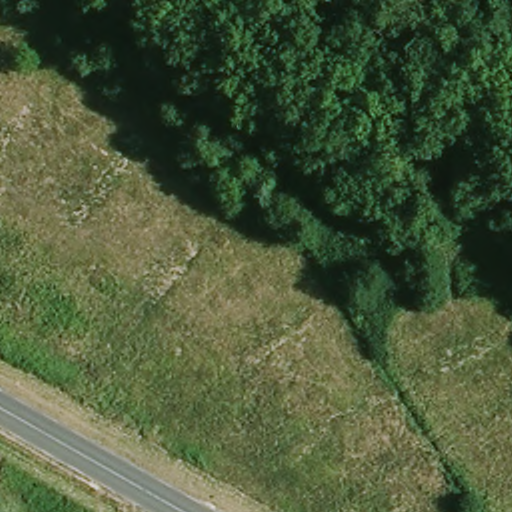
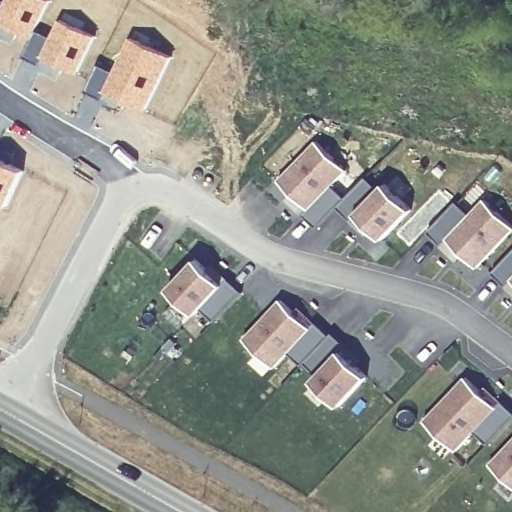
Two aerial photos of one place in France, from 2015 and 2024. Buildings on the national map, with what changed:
new [(0,10),(0,0),(5,0),(0,10)]
new [(5,0),(50,0),(37,28),(31,40),(0,26),(0,10),(5,0)]
new [(31,40),(37,28),(50,34),(58,17),(95,34),(76,74),(27,49),(31,40)]
new [(97,64),(112,70),(129,35),(171,55),(143,111),(87,88),(97,64)]
new [(315,141),(346,170),(331,185),(345,197),(365,177),(378,189),(384,184),(411,210),(383,240),(356,214),(350,220),(336,207),(316,228),(302,214),(308,209),(278,180),(315,141)]
new [(25,169),(6,208),(0,205),(0,157),(25,169)]
new [(469,214),(483,199),(512,227),(512,230),(476,267),(446,239),(441,245),(427,231),(455,202),(469,214)]
new [(512,253),(512,292),(492,273),(512,253)]
new [(196,259),(223,284),(228,278),(242,291),(214,321),(200,309),(195,315),(168,290),(196,259)]
new [(281,299),(311,327),(316,322),(330,335),(333,332),(347,346),(342,351),(368,376),(340,406),(312,381),(318,375),(305,362),(302,365),(288,352),(275,368),(244,339),(281,299)]
new [(497,406),(503,400),(512,409),(512,420),(489,444),(475,431),(461,446),(429,415),(466,376),(497,406)]
new [(512,483),(491,463),(512,441),(512,483)]

